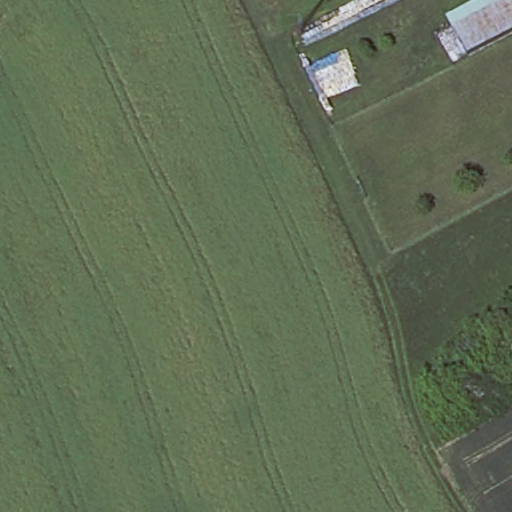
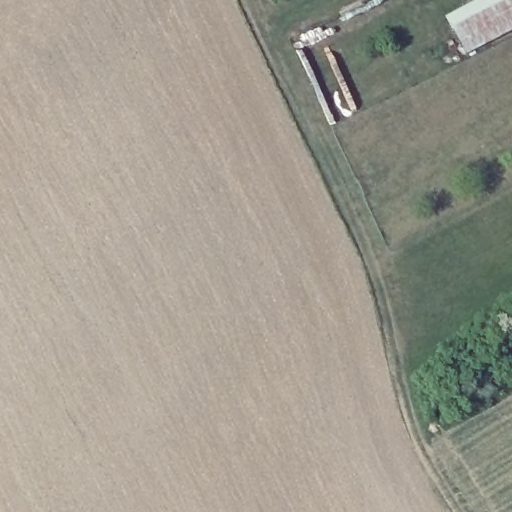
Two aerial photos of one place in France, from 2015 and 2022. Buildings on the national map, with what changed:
unchanged [(512,0),(512,31),(464,55),(450,29),(443,15),(473,0),(512,0)]

